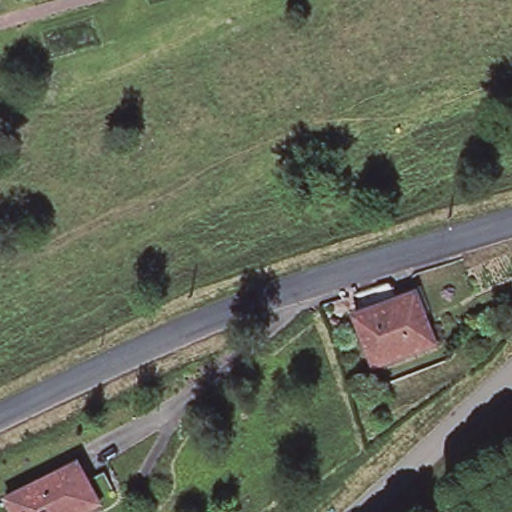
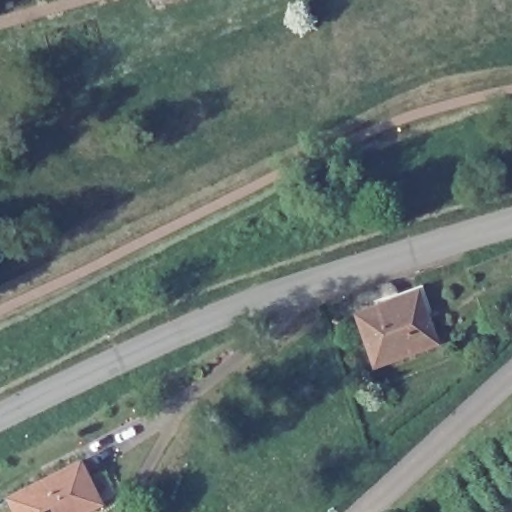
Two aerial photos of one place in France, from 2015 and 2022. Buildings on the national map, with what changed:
unchanged [(436,340),(379,369),(354,315),(413,288),(436,340)]
unchanged [(80,512),(10,512),(3,497),(78,462),(98,503),(80,512)]

